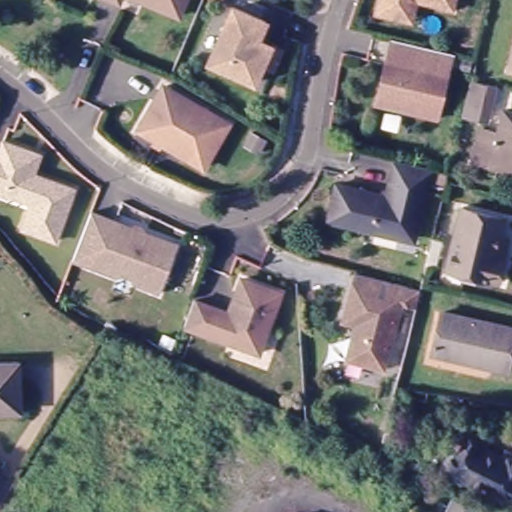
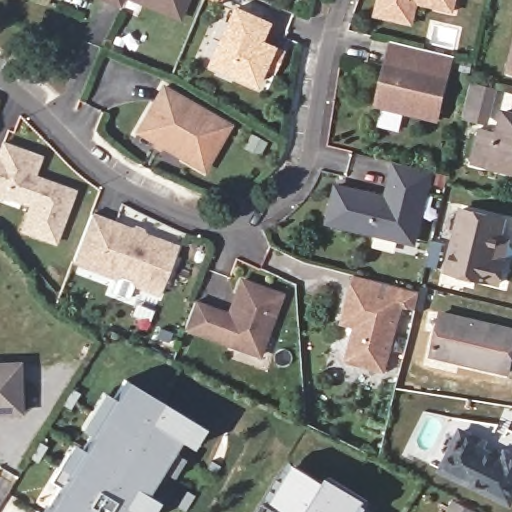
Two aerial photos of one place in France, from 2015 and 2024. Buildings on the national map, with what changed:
unchanged [(101,0),(120,0),(118,7),(101,0)]
unchanged [(127,0),(186,0),(177,21),(127,0)]
unchanged [(416,7),(412,24),(396,20),(394,24),(375,19),(379,0),(455,0),(451,16),(416,7)]
unchanged [(273,69),(263,65),(256,84),(209,68),(229,11),(262,23),(255,42),(269,47),(279,50),(273,69)]
unchanged [(437,125),(374,109),(386,60),(390,45),(421,53),(453,61),(437,125)]
unchanged [(507,73),(512,53),(512,74),(507,73)]
unchanged [(476,110),(460,106),(466,84),(482,88),(476,110)]
unchanged [(227,129),(201,173),(136,134),(161,91),(227,129)]
unchanged [(480,168),(496,125),(510,130),(512,125),(512,179),(480,168)]
unchanged [(58,245),(24,233),(34,208),(11,199),(10,202),(0,198),(0,159),(1,159),(6,145),(34,156),(43,159),(41,164),(36,179),(76,194),(58,245)]
unchanged [(414,249),(404,247),(325,227),(334,190),(383,203),(393,167),(429,177),(423,199),(426,200),(414,249)]
unchanged [(505,268),(499,289),(448,275),(465,215),(506,227),(501,244),(511,247),(505,268)]
unchanged [(175,252),(156,298),(132,289),(134,284),(115,276),(113,281),(70,264),(82,233),(89,218),(175,252)]
unchanged [(418,291),(417,294),(414,308),(403,305),(385,371),(348,361),(357,326),(344,323),(357,274),(407,289),(418,291)]
unchanged [(196,306),(231,319),(244,285),(283,299),(261,359),(186,332),(196,306)]
unchanged [(508,375),(434,357),(445,316),(512,333),(512,358),(508,375)]
unchanged [(0,365),(15,364),(16,402),(16,413),(0,413),(0,365)]
new [(60,490),(49,482),(58,468),(71,445),(84,452),(93,439),(81,430),(103,393),(116,399),(126,381),(204,428),(192,449),(181,441),(173,452),(184,459),(174,478),(161,472),(148,495),(158,502),(152,512),(46,512),(60,490)]
unchanged [(431,463),(449,426),(472,436),(469,443),(490,453),(494,447),(503,426),(512,430),(512,467),(499,496),(431,463)]
new [(266,502),(271,504),(295,464),(326,482),(329,477),(366,499),(364,504),(369,507),(364,512),(260,512),(266,502)]
unchanged [(453,503),(472,512),(448,512),(453,503)]
new [(35,511),(37,512),(34,512),(35,511)]

